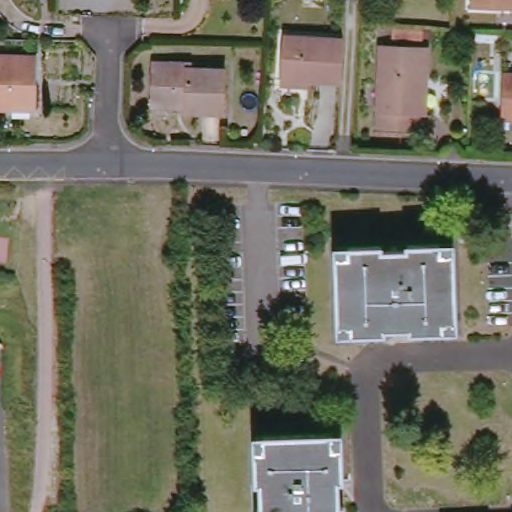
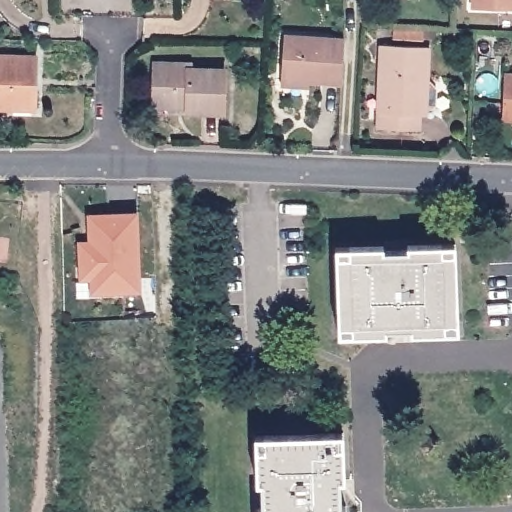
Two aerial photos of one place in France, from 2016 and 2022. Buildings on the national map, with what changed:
unchanged [(469,10),(469,0),(512,0),(512,11),(506,10),(469,10)]
unchanged [(286,32),(347,35),(344,79),(311,76),(311,83),(283,81),(283,75),(286,32)]
unchanged [(417,116),(417,130),(377,129),(380,47),(426,49),(425,82),(424,116),(417,116)]
unchanged [(0,57),(32,58),(32,109),(0,109),(0,57)]
unchanged [(187,113),(187,108),(152,106),(152,63),(189,64),(188,70),(222,71),(221,113),(187,113)]
unchanged [(502,114),(502,74),(512,75),(512,120),(502,120),(502,114)]
new [(90,279),(80,279),(77,239),(88,239),(87,213),(137,211),(142,291),(91,293),(90,279)]
unchanged [(352,334),(339,334),(339,325),(337,257),(336,249),(348,249),(380,248),(381,252),(407,250),(407,247),(440,245),(452,244),(452,253),(455,320),(455,331),(442,332),(410,332),(384,333),(352,334)]
unchanged [(257,509),(260,509),(260,484),(257,484),(255,451),(255,437),(264,437),(332,435),(340,434),(340,448),(342,479),(343,506),(343,512),(258,512),(257,509)]

